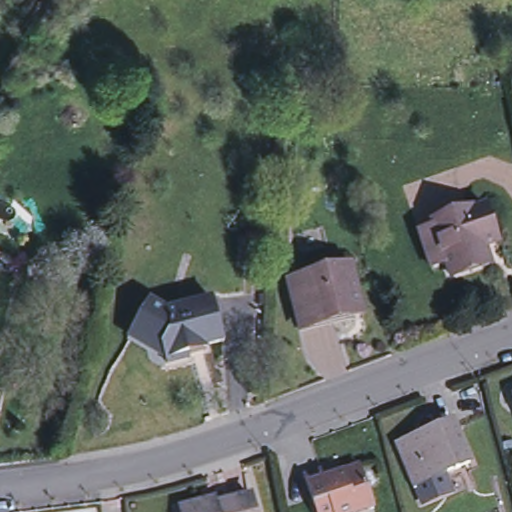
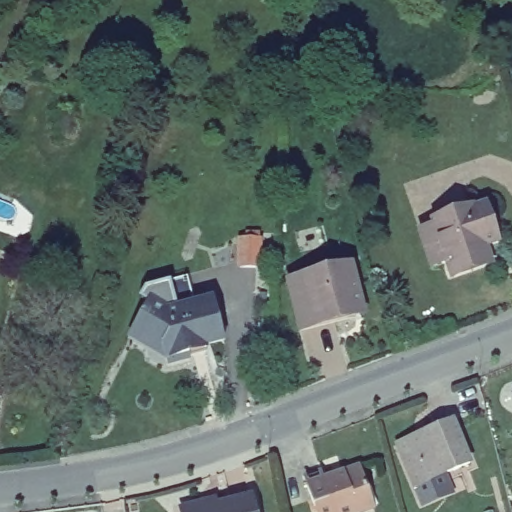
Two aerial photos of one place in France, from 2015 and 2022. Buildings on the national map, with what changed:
unchanged [(445,261),(429,266),(417,229),(432,224),(430,220),(448,214),(470,207),(470,209),(485,205),(497,242),(484,246),(487,259),(490,266),(464,274),(450,279),(448,273),(445,261)]
new [(240,236),(258,236),(258,265),(239,264),(240,236)]
unchanged [(285,282),(297,279),(349,265),(360,310),(310,323),(298,326),(285,282)]
unchanged [(189,355),(167,361),(165,354),(154,347),(149,335),(132,326),(149,299),(167,310),(213,298),(224,337),(205,342),(207,350),(189,355)]
unchanged [(424,435),(422,431),(450,420),(467,461),(413,484),(397,446),(424,435)]
unchanged [(320,471),(322,477),(357,465),(372,506),(353,512),(317,512),(304,477),(320,471)]
unchanged [(177,507),(219,497),(220,502),(237,497),(255,493),(260,512),(178,512),(177,507)]

